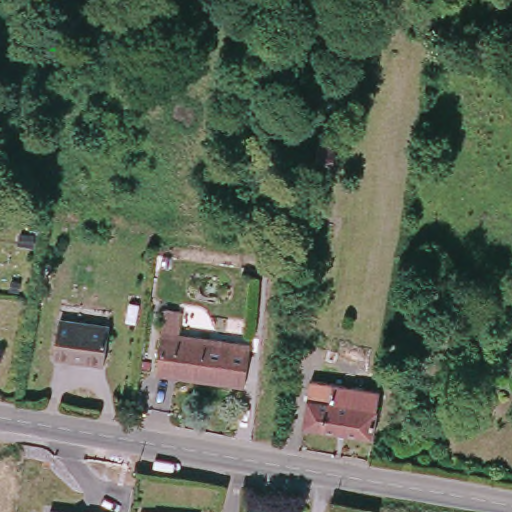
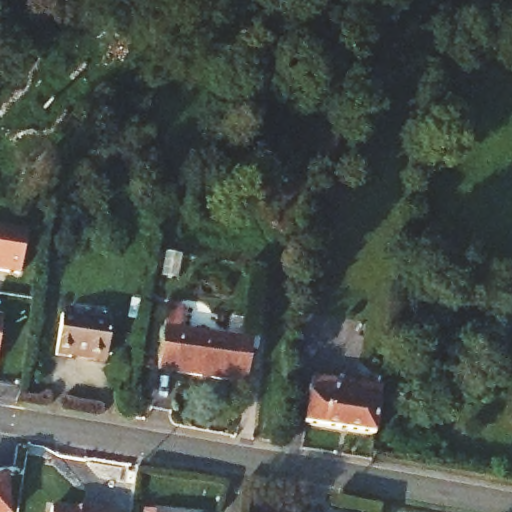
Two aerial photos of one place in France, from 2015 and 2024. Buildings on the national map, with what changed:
unchanged [(333,160),(321,212),(306,210),(318,156),(333,160)]
new [(0,272),(0,228),(25,232),(19,275),(0,272)]
unchanged [(113,320),(109,355),(76,350),(74,356),(60,355),(65,315),(113,320)]
unchanged [(181,320),(179,331),(250,345),(246,380),(157,369),(163,317),(181,320)]
unchanged [(300,422),(307,392),(310,377),(331,380),(377,388),(370,435),(300,422)]
new [(8,512),(0,512),(0,481),(6,480),(8,512)]
unchanged [(79,512),(47,512),(47,508),(79,512)]
unchanged [(187,512),(143,512),(143,508),(187,512)]
unchanged [(85,510),(103,512),(85,512),(85,510)]

